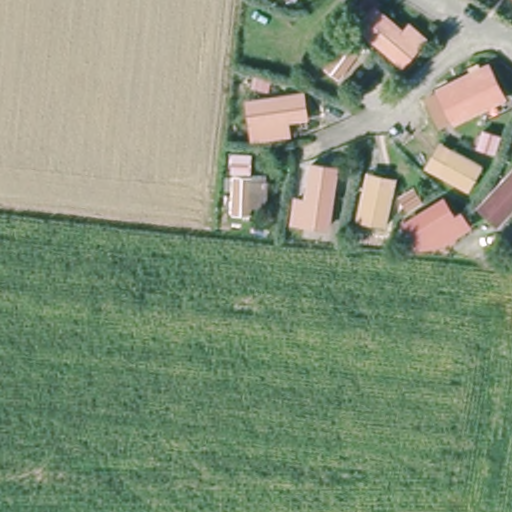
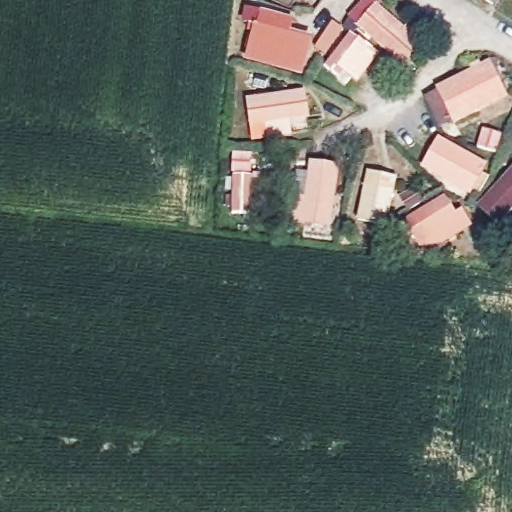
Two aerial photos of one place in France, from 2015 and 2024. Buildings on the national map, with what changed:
unchanged [(426,35),(417,45),(408,57),(356,10),(363,0),(380,0),(380,1),(408,26),(411,22),(426,35)]
new [(244,4),(294,17),(291,31),(313,37),(301,75),(243,60),(252,23),(240,19),(244,4)]
unchanged [(367,38),(339,71),(327,59),(353,26),(367,38)]
unchanged [(455,115),(438,84),(491,59),(508,91),(455,115)]
unchanged [(255,133),(253,119),(250,96),(305,90),(309,112),(289,115),(290,131),(255,133)]
unchanged [(427,167),(440,142),(483,166),(470,191),(427,167)]
unchanged [(232,172),(232,153),(250,153),(250,172),(232,172)]
unchanged [(337,169),(329,228),(296,223),(299,199),(309,200),(314,166),(337,169)]
unchanged [(357,219),(364,184),(367,169),(395,175),(392,190),(385,225),(357,219)]
unchanged [(481,203),(512,169),(512,202),(497,217),(481,203)]
unchanged [(266,205),(252,204),(252,214),(232,213),(235,175),(253,175),(252,186),(266,186),(266,205)]
unchanged [(434,247),(427,236),(418,241),(407,224),(441,204),(451,221),(458,216),(466,228),(434,247)]
unchanged [(373,246),(358,243),(362,227),(377,230),(373,246)]
unchanged [(504,246),(502,260),(466,256),(468,242),(504,246)]

